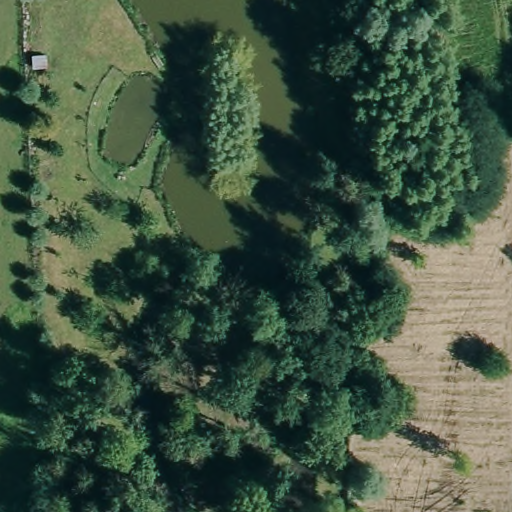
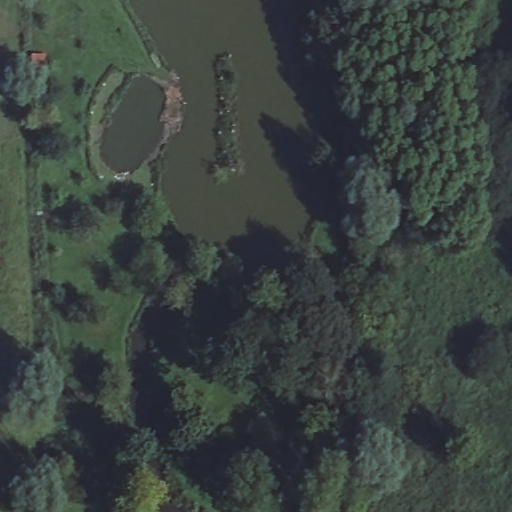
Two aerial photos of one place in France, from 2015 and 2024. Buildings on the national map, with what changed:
unchanged [(50,55),(50,68),(33,69),(33,56),(50,55)]
unchanged [(60,161),(59,180),(42,179),(43,161),(60,161)]

